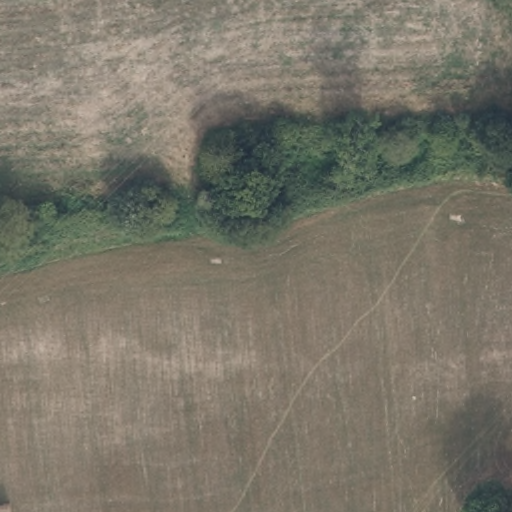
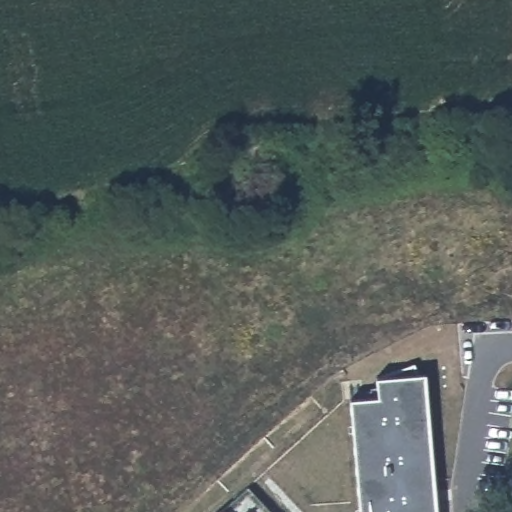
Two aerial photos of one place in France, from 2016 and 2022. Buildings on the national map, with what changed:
new [(349,399),(377,396),(376,379),(424,375),(436,512),(360,512),(349,399)]
new [(247,488),(269,512),(220,512),(247,488)]

